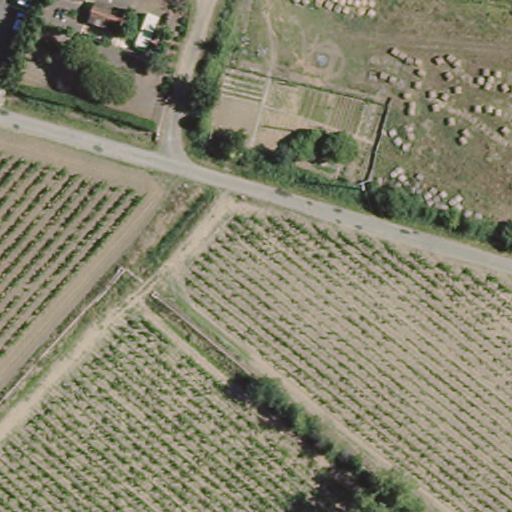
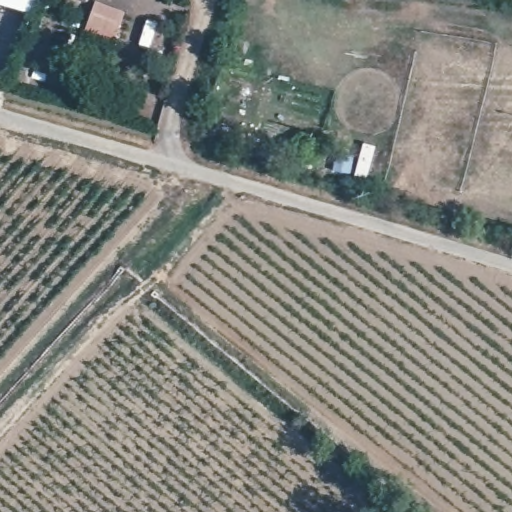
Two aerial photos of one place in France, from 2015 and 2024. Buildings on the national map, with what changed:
unchanged [(36,0),(36,1),(29,0),(36,0)]
unchanged [(72,0),(88,0),(87,5),(72,0)]
unchanged [(100,0),(127,5),(116,34),(89,26),(92,0),(100,0)]
unchanged [(143,14),(164,19),(154,62),(137,56),(143,14)]

